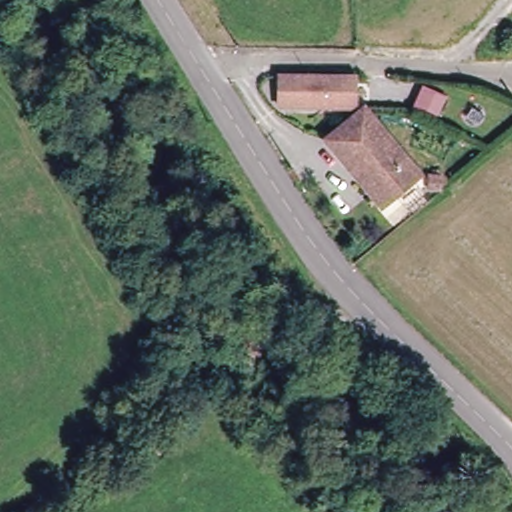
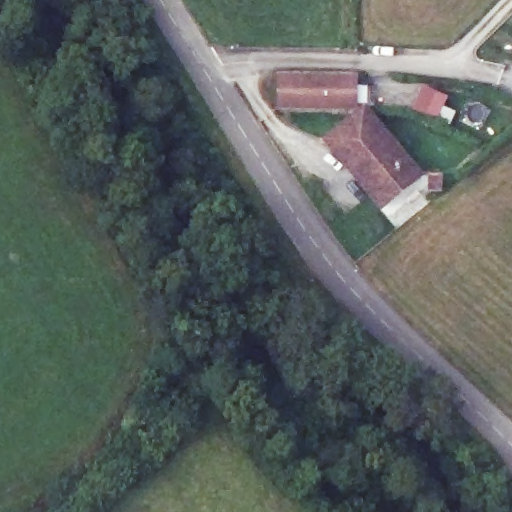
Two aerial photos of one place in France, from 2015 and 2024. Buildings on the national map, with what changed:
unchanged [(280,106),(280,75),(356,74),(356,87),(356,105),(339,105),(280,106)]
unchanged [(425,86),(448,97),(438,120),(415,110),(425,86)]
unchanged [(366,106),(419,171),(381,205),(327,137),(366,106)]
unchanged [(430,191),(431,176),(443,176),(442,191),(430,191)]

